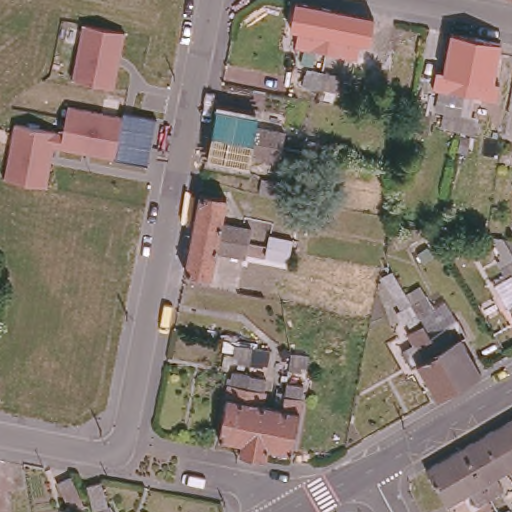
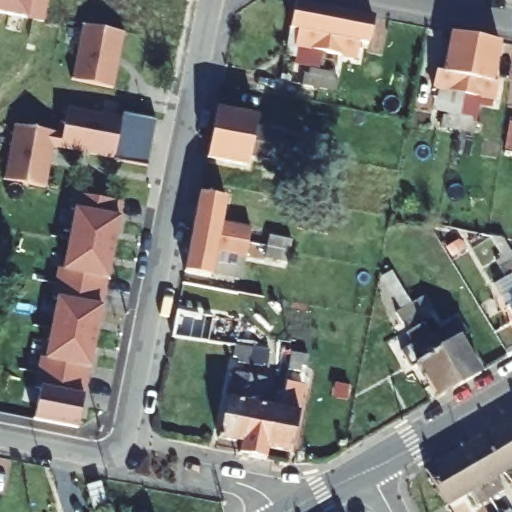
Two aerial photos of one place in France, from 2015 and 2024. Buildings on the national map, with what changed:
new [(27,20),(0,15),(0,0),(48,0),(42,24),(27,20)]
unchanged [(311,44),(311,45),(295,42),(297,30),(291,28),(296,0),(302,0),(334,6),(327,47),(311,44)]
unchanged [(496,0),(512,0),(512,7),(495,4),(496,0)]
unchanged [(334,6),(375,14),(367,43),(363,43),(360,55),(344,52),(345,50),(327,47),(334,6)]
unchanged [(112,89),(70,80),(82,21),(124,32),(112,89)]
unchanged [(447,94),(445,97),(432,95),(435,79),(442,80),(452,30),(476,35),(465,97),(447,94)]
unchanged [(427,31),(441,34),(435,59),(423,56),(427,31)]
unchanged [(476,35),(500,39),(490,89),(498,90),(495,106),(480,104),(480,100),(465,97),(476,35)]
unchanged [(335,77),(339,79),(337,91),(319,88),(302,85),(303,72),(310,73),(311,67),(322,70),(335,72),(335,77)]
unchanged [(57,131),(62,106),(122,118),(123,110),(152,116),(144,165),(52,146),(43,186),(2,179),(12,124),(57,131)]
unchanged [(216,130),(220,106),(262,115),(262,122),(290,129),(287,144),(216,130)]
unchanged [(475,128),(474,139),(457,136),(440,133),(442,122),(447,122),(448,117),(460,119),(472,121),(470,127),(475,128)]
unchanged [(284,158),(257,152),(253,164),(210,155),(216,130),(287,144),(284,158)]
unchanged [(300,159),(302,148),(303,139),(325,143),(322,152),(320,164),(300,159)]
unchanged [(262,190),(265,176),(281,179),(278,194),(262,190)]
unchanged [(196,230),(203,190),(231,195),(227,218),(253,224),(250,240),(196,230)]
new [(32,420),(40,390),(32,388),(40,358),(43,359),(56,297),(50,295),(57,268),(62,270),(74,209),(77,195),(123,206),(122,218),(108,281),(90,372),(84,397),(77,431),(32,420)]
unchanged [(248,254),(219,249),(215,274),(188,269),(196,230),(250,240),(248,254)]
unchanged [(270,235),(290,240),(288,249),(286,260),(266,255),(267,245),(270,235)]
unchanged [(511,263),(512,263),(512,279),(510,275),(505,277),(500,269),(511,263)]
unchanged [(407,295),(423,286),(427,295),(424,297),(427,303),(417,310),(404,316),(401,310),(397,312),(392,303),(407,295)]
unchanged [(512,302),(512,310),(508,303),(512,302)]
unchanged [(441,318),(440,315),(452,308),(461,322),(455,326),(480,370),(458,382),(426,326),(441,318)]
new [(172,338),(177,312),(212,318),(208,344),(172,338)]
unchanged [(458,382),(437,395),(412,352),(405,355),(396,341),(410,332),(412,335),(426,326),(458,382)]
unchanged [(270,356),(266,355),(265,360),(253,357),(252,357),(241,355),(242,350),(236,348),(237,340),(253,342),(256,343),(272,346),(270,356)]
unchanged [(307,362),(302,362),(300,367),(290,365),(293,350),(309,353),(307,362)]
unchanged [(220,431),(232,363),(250,366),(248,380),(245,394),(245,395),(248,397),(242,436),(220,431)]
unchanged [(240,445),(242,436),(248,397),(245,395),(245,394),(248,380),(250,366),(264,369),(262,383),(267,385),(263,400),(277,402),(268,442),(267,451),(240,445)]
unchanged [(282,403),(286,382),(287,379),(287,373),(303,376),(300,391),(302,392),(300,402),(291,445),(268,442),(277,402),(282,403)]
unchanged [(488,430),(512,416),(512,465),(509,466),(488,430)]
unchanged [(498,473),(505,486),(488,495),(463,445),(488,430),(509,466),(498,473)]
unchanged [(478,502),(472,490),(447,503),(442,493),(427,466),(463,445),(488,495),(478,502)]
unchanged [(14,492),(8,468),(22,465),(27,490),(14,492)]
unchanged [(71,508),(58,482),(70,476),(82,503),(71,508)]
unchanged [(107,505),(93,508),(88,483),(102,480),(107,505)]
unchanged [(117,511),(117,512),(98,512),(112,503),(117,511)]
unchanged [(512,512),(506,512),(512,508),(512,512)]

